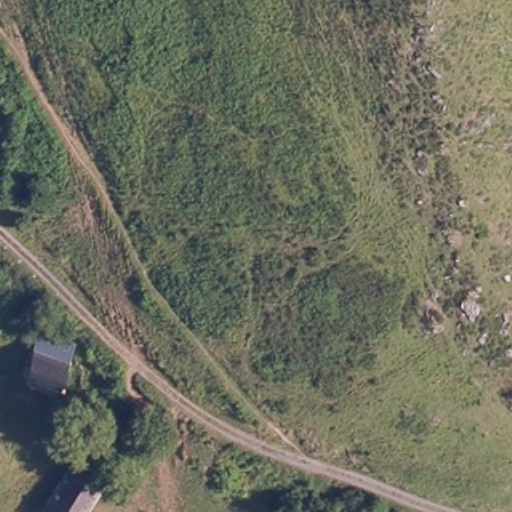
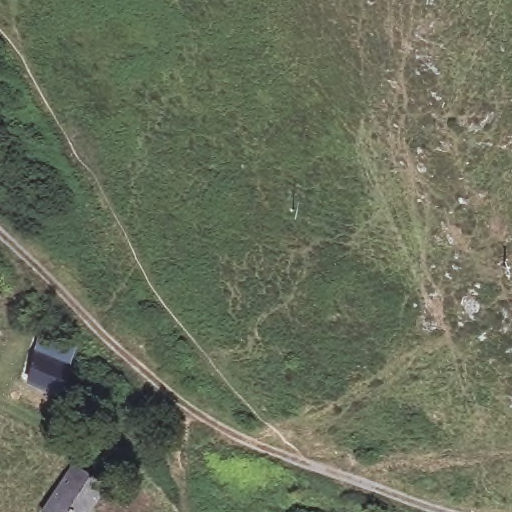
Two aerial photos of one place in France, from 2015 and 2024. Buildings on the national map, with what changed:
unchanged [(71,358),(49,399),(20,384),(39,339),(71,358)]
unchanged [(39,508),(69,464),(101,484),(83,512),(45,512),(39,508)]

